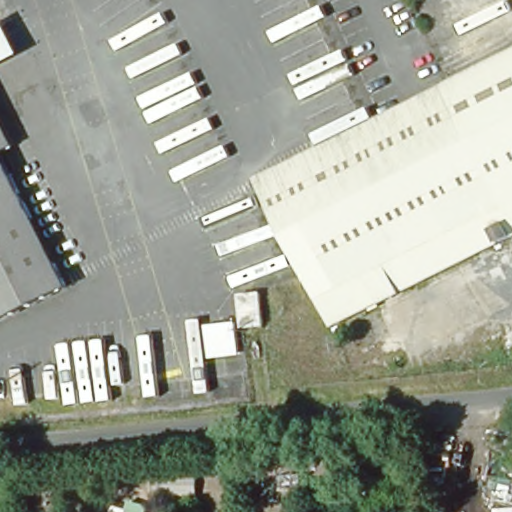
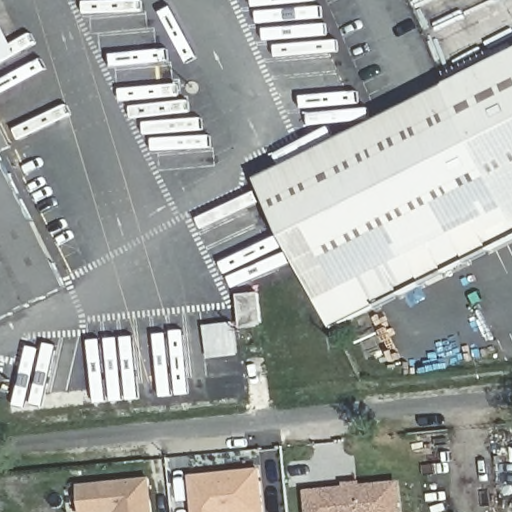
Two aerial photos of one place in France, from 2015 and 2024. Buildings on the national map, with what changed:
demolished [(473,0),(492,0),(477,8),(473,0)]
unchanged [(16,53),(0,62),(0,25),(1,24),(16,53)]
unchanged [(512,54),(512,236),(331,326),(259,180),(512,54)]
unchanged [(0,152),(0,122),(12,146),(0,152)]
unchanged [(0,321),(0,154),(66,287),(0,321)]
unchanged [(242,329),(238,296),(259,294),(262,327),(242,329)]
new [(263,512),(194,512),(190,477),(259,470),(263,512)]
new [(77,483),(150,476),(154,512),(80,512),(78,500),(77,483)]
new [(304,512),(302,490),(342,486),(341,482),(362,480),(363,483),(398,480),(402,512),(304,512)]

